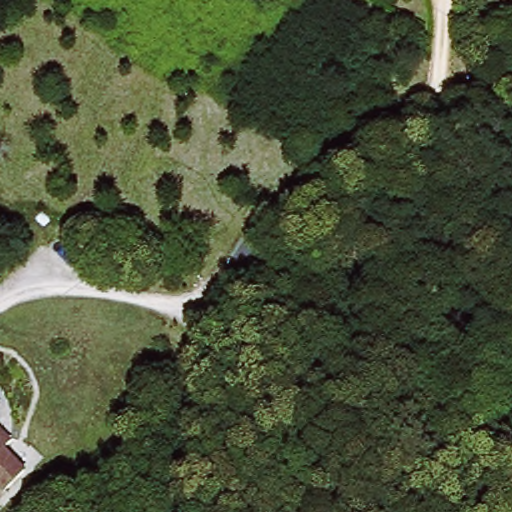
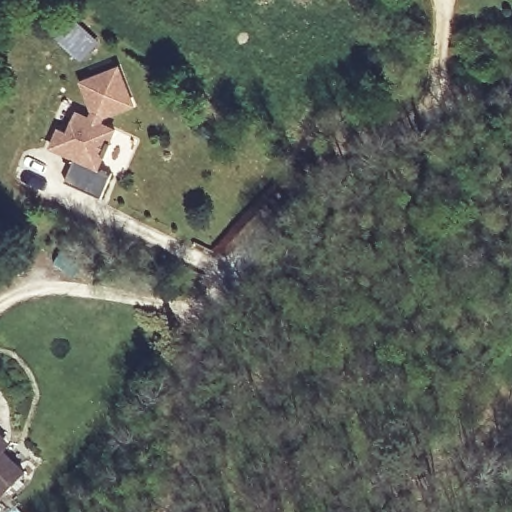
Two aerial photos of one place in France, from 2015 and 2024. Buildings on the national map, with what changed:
new [(137,106),(107,117),(105,121),(120,129),(102,170),(113,175),(103,200),(65,184),(75,161),(48,150),(57,126),(67,130),(75,110),(89,116),(91,111),(80,81),(120,65),(137,106)]
unchanged [(2,492),(0,490),(0,453),(21,475),(2,492)]

